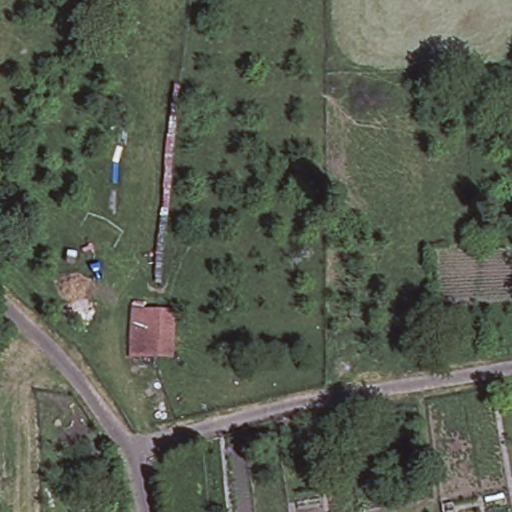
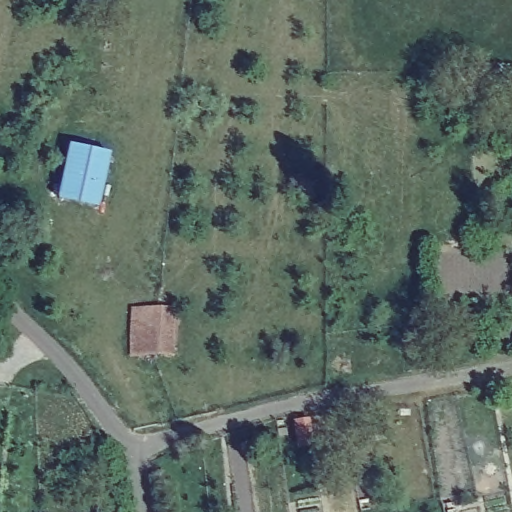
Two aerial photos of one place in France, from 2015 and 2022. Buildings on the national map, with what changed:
new [(68,144),(107,152),(96,206),(57,197),(68,144)]
unchanged [(137,306),(179,310),(176,345),(134,338),(137,306)]
new [(385,411),(386,429),(368,429),(368,412),(385,411)]
new [(309,416),(313,440),(299,441),(296,418),(309,416)]

